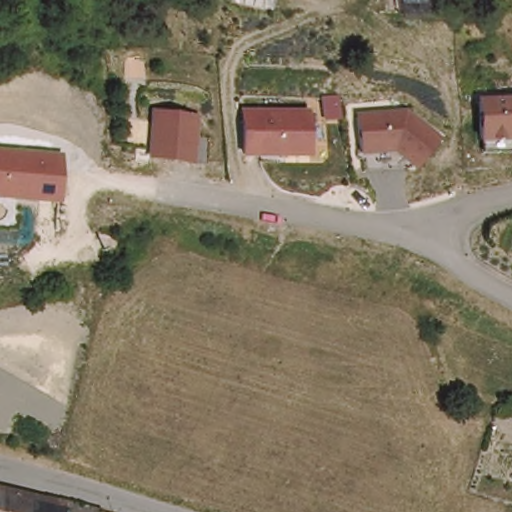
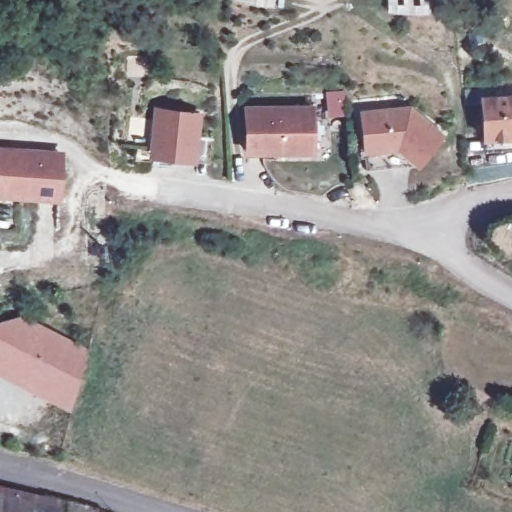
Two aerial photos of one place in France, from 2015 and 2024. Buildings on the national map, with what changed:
unchanged [(480,148),(482,134),(487,96),(512,99),(512,141),(510,151),(480,148)]
unchanged [(362,157),(359,108),(410,101),(450,135),(419,171),(397,155),(362,157)]
unchanged [(245,158),(243,104),(315,103),(316,156),(245,158)]
unchanged [(150,156),(154,129),(155,114),(199,119),(195,149),(194,161),(150,156)]
unchanged [(0,144),(67,151),(62,204),(0,198),(0,144)]
new [(0,376),(0,322),(24,317),(90,349),(70,412),(0,376)]
unchanged [(69,504),(66,512),(0,512),(0,482),(0,483),(69,504)]
unchanged [(66,512),(69,504),(91,512),(66,512)]

